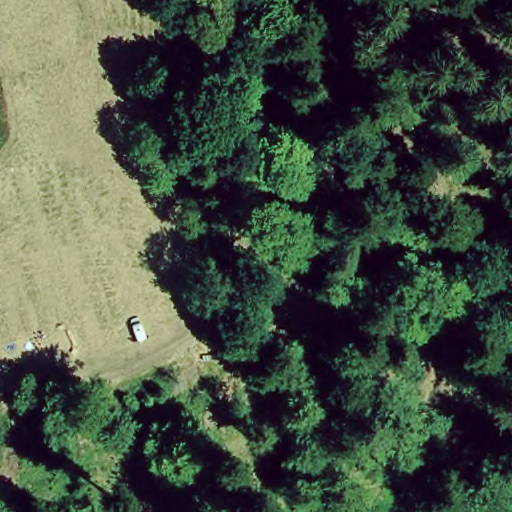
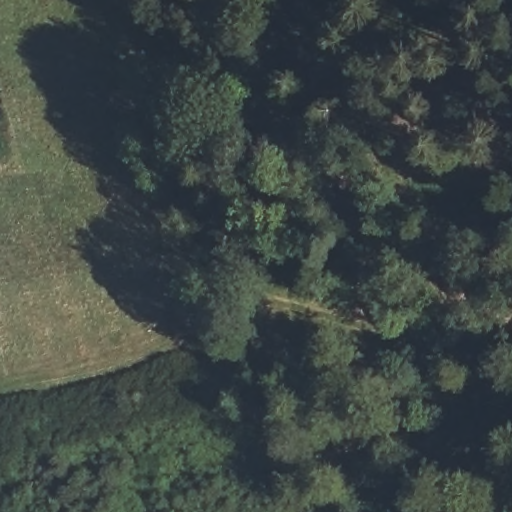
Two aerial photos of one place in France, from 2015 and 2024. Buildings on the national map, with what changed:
[]

